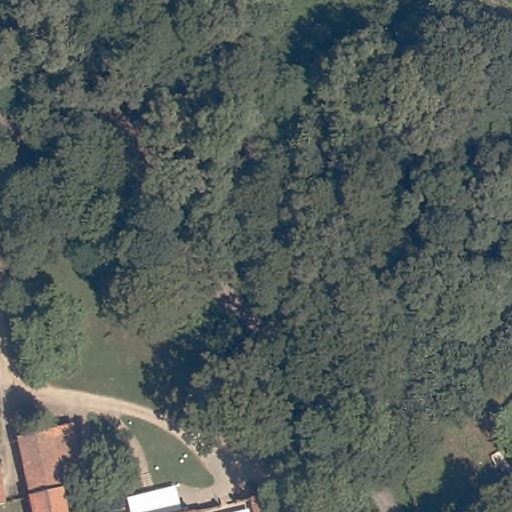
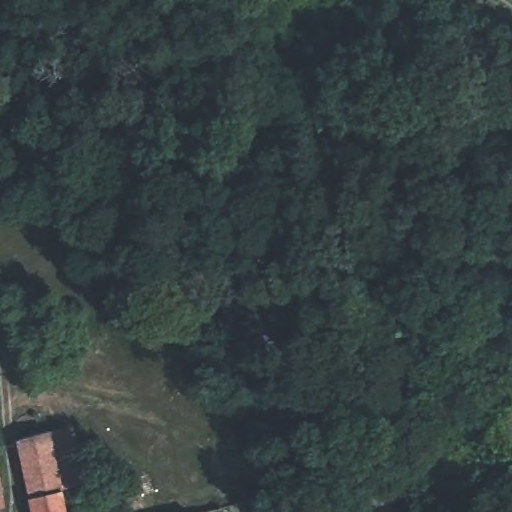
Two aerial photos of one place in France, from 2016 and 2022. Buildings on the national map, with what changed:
unchanged [(30,490),(20,436),(54,428),(66,482),(30,490)]
unchanged [(7,498),(0,500),(0,458),(7,498)]
unchanged [(443,462),(472,496),(462,505),(434,472),(443,462)]
unchanged [(72,512),(35,512),(30,490),(66,482),(72,512)]
unchanged [(271,512),(268,495),(286,491),(291,512),(271,512)]
unchanged [(210,512),(197,512),(209,509),(210,512)]

